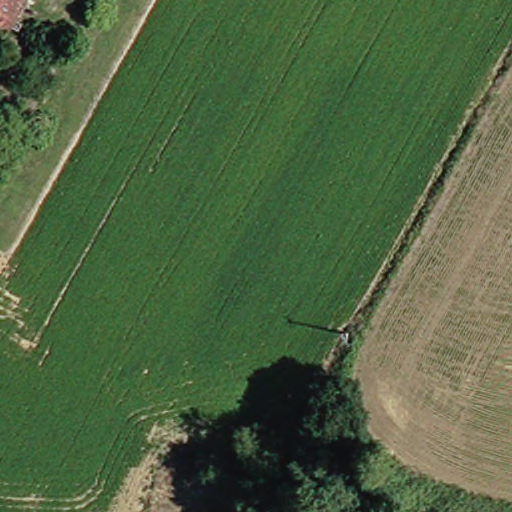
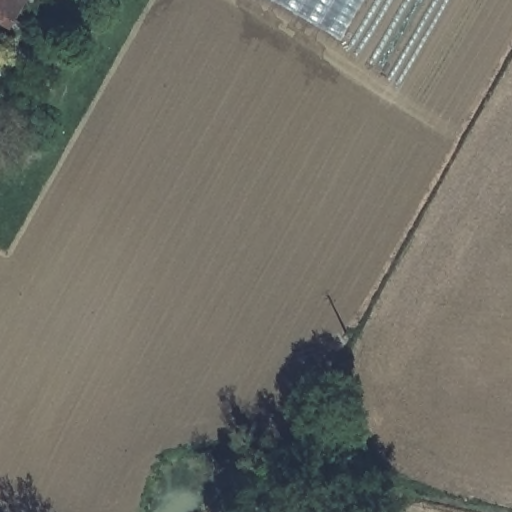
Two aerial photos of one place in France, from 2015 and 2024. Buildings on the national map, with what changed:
unchanged [(19,25),(0,14),(0,0),(32,0),(19,25)]
new [(343,35),(281,0),(364,0),(343,35)]

